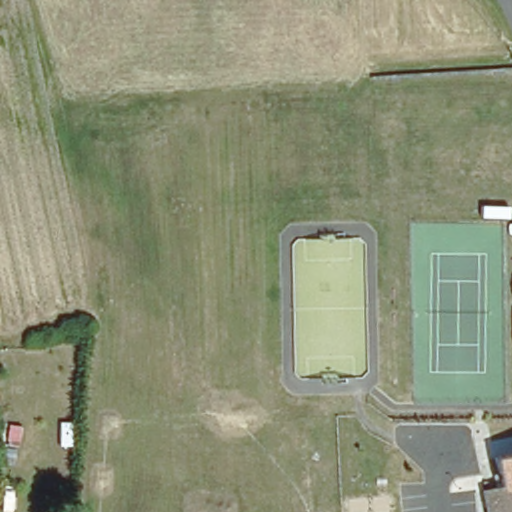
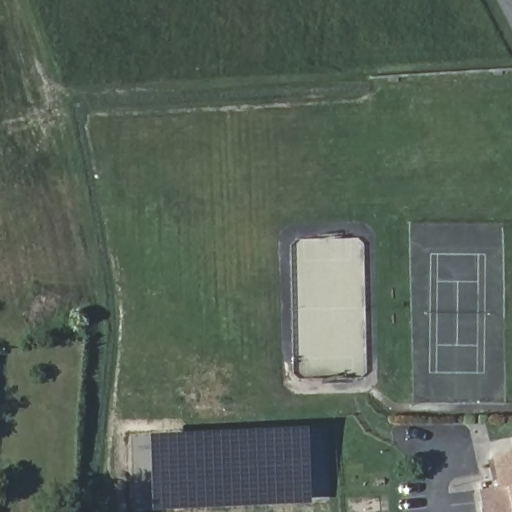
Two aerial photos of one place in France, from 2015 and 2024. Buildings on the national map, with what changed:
new [(151,435),(308,427),(312,503),(155,511),(151,435)]
unchanged [(502,489),(496,459),(512,456),(512,512),(488,512),(485,493),(502,489)]

